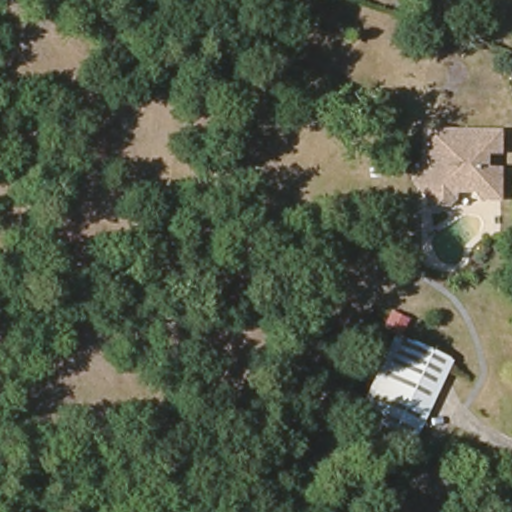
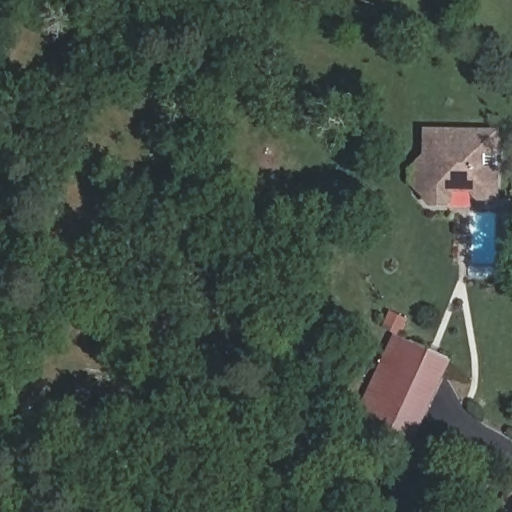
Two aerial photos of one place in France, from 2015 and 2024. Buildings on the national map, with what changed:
unchanged [(417,166),(430,154),(431,130),(501,131),(500,153),(486,152),(485,167),(500,167),(498,197),(482,197),(474,189),(453,188),(453,198),(448,202),(433,202),(428,197),(428,194),(417,181),(417,166)]
unchanged [(416,351),(442,361),(412,423),(386,411),(416,351)]

